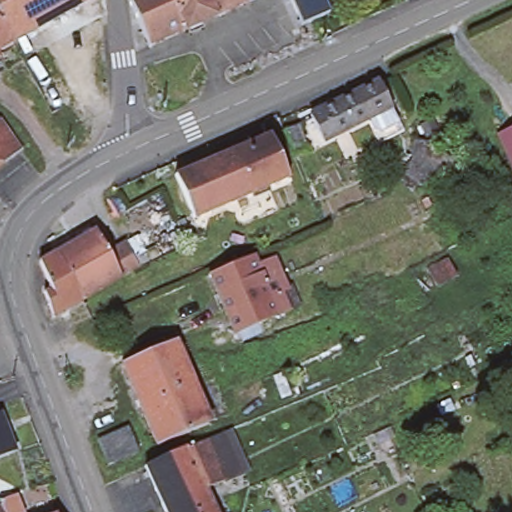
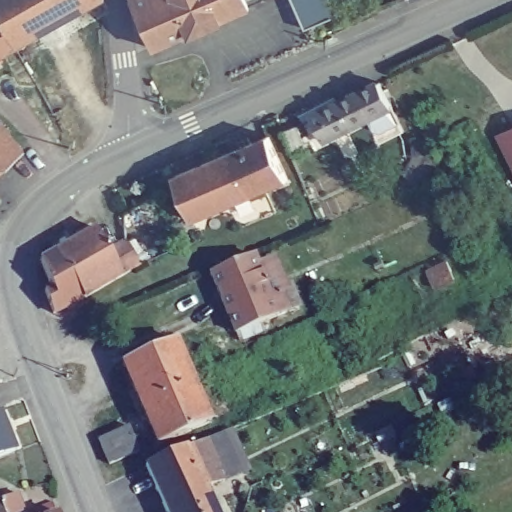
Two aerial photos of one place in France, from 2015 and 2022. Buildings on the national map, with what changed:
unchanged [(40,24),(34,28),(8,42),(6,43),(0,31),(0,0),(65,0),(69,8),(40,24)]
unchanged [(65,0),(83,0),(69,8),(65,0)]
unchanged [(150,50),(128,0),(171,0),(186,34),(150,50)]
unchanged [(234,13),(220,19),(202,27),(186,34),(171,0),(261,0),(247,6),(234,13)]
unchanged [(302,25),(291,0),(327,0),(332,11),(302,25)]
unchanged [(395,0),(402,0),(396,3),(395,0)]
unchanged [(6,43),(0,47),(0,31),(6,43)]
unchanged [(307,111),(352,89),(376,76),(388,99),(392,108),(368,120),(363,111),(318,133),(307,111)]
unchanged [(293,120),(302,143),(290,148),(281,124),(293,120)]
unchanged [(20,150),(0,166),(0,123),(20,150)]
unchanged [(512,157),(500,134),(512,129),(512,157)]
unchanged [(270,134),(288,177),(252,193),(233,149),(270,134)]
unchanged [(233,149),(252,193),(194,218),(175,174),(233,149)]
unchanged [(137,273),(122,281),(105,291),(80,244),(96,235),(115,268),(130,259),(137,273)]
unchanged [(75,247),(80,244),(105,291),(93,298),(82,304),(56,256),(75,247)]
unchanged [(40,265),(56,256),(82,304),(63,314),(55,318),(47,298),(53,294),(40,265)]
unchanged [(210,274),(251,257),(267,297),(226,314),(210,274)]
unchanged [(447,259),(458,279),(420,297),(408,275),(447,259)]
unchanged [(277,293),(286,313),(235,334),(226,314),(267,297),(277,293)]
unchanged [(182,360),(131,381),(124,363),(175,342),(182,360)]
unchanged [(150,427),(141,408),(130,381),(131,381),(182,360),(192,384),(209,424),(187,432),(157,444),(150,427)]
unchanged [(10,449),(0,453),(0,422),(10,449)]
unchanged [(138,450),(109,464),(97,439),(126,426),(138,450)]
unchanged [(233,433),(249,472),(222,482),(220,476),(207,444),(233,433)]
unchanged [(207,444),(220,476),(200,484),(204,493),(163,510),(145,470),(207,444)]
unchanged [(211,508),(219,504),(223,512),(164,512),(163,510),(204,493),(211,508)]
unchanged [(18,497),(21,508),(23,512),(0,512),(0,504),(18,497)]

